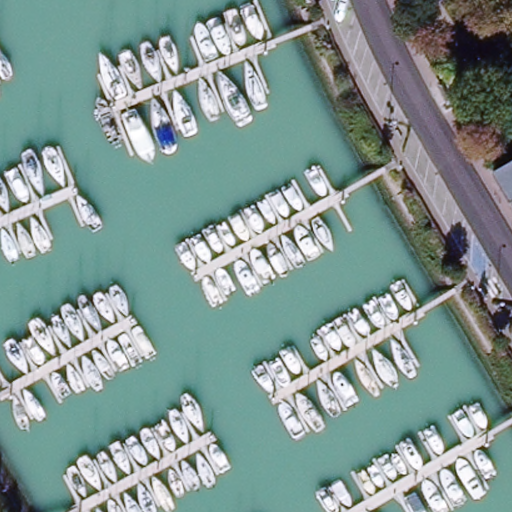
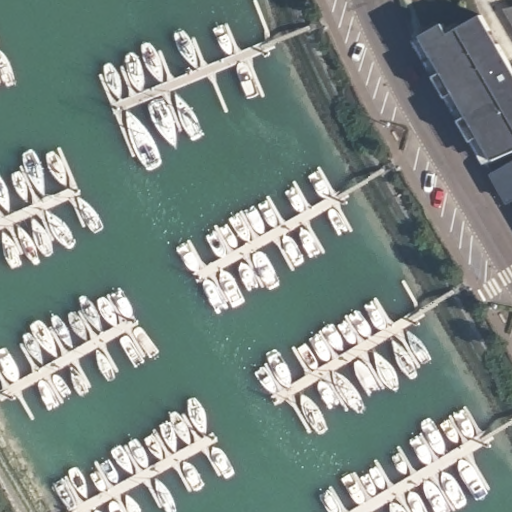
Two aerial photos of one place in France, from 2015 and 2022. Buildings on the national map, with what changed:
new [(512,4),(512,12),(508,6),(512,4)]
new [(465,114),(452,92),(444,97),(432,75),(411,39),(419,34),(441,22),(447,32),(480,12),(512,69),(512,150),(491,159),(483,162),(470,141),(457,119),(465,114)]
new [(460,17),(463,22),(447,32),(444,27),(460,17)]
demolished [(509,69),(487,78),(480,62),(502,52),(509,69)]
new [(450,107),(458,102),(465,114),(457,119),(450,107)]
unchanged [(498,172),(512,165),(512,196),(498,172)]

